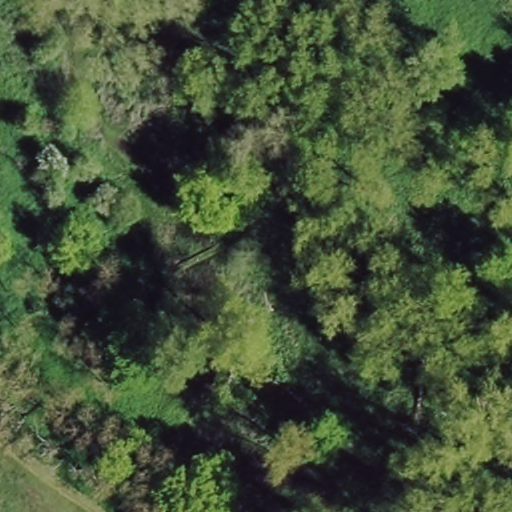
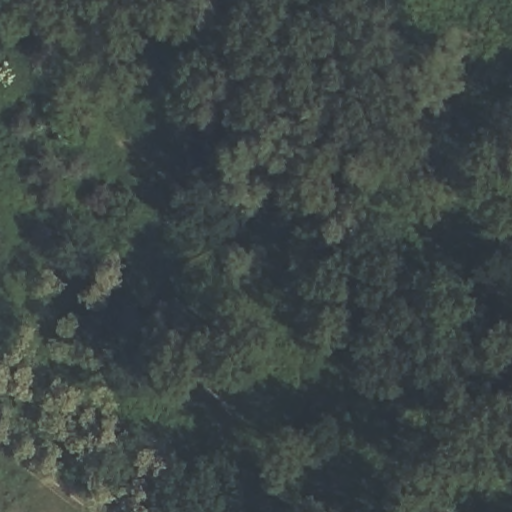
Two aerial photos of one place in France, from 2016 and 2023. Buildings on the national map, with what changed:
unchanged [(40,244),(63,233),(75,259),(49,269),(40,244)]

